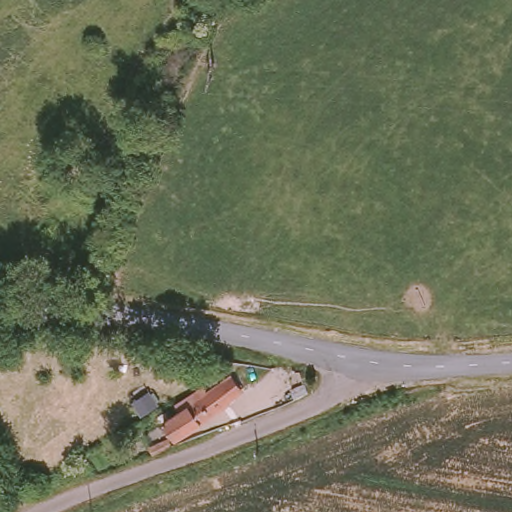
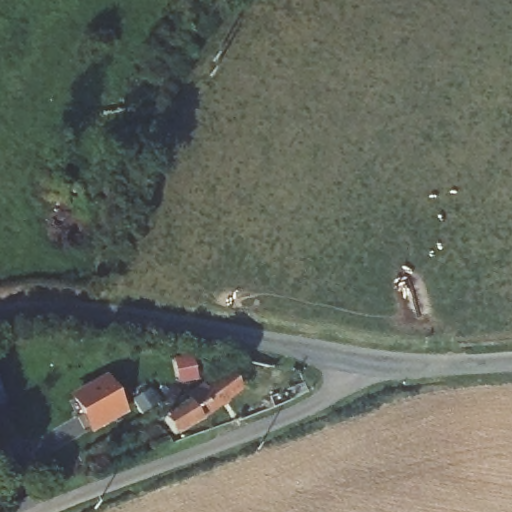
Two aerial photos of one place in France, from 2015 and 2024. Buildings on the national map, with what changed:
new [(89,431),(70,396),(107,376),(127,412),(89,431)]
unchanged [(166,412),(222,380),(232,396),(175,428),(166,412)]

